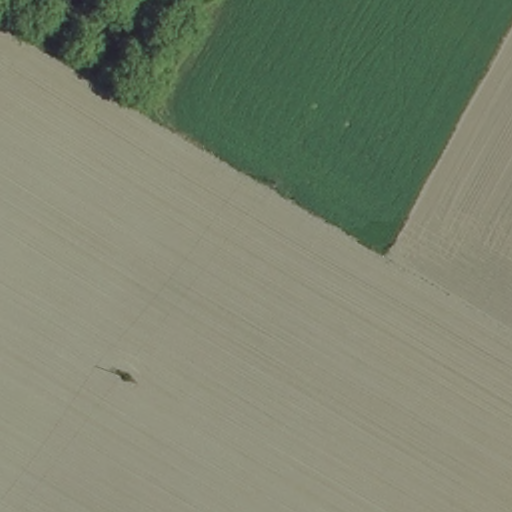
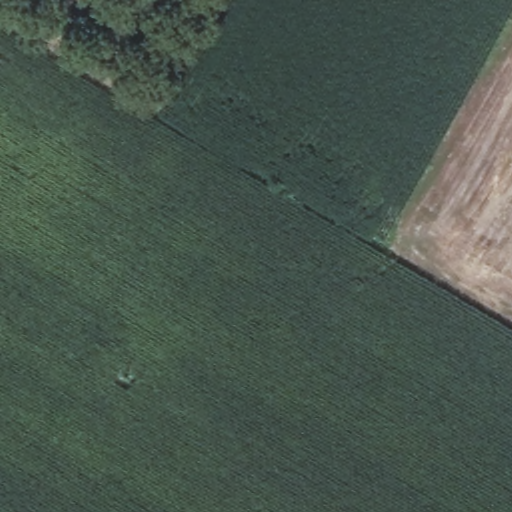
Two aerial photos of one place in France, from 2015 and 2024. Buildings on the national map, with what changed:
[]

